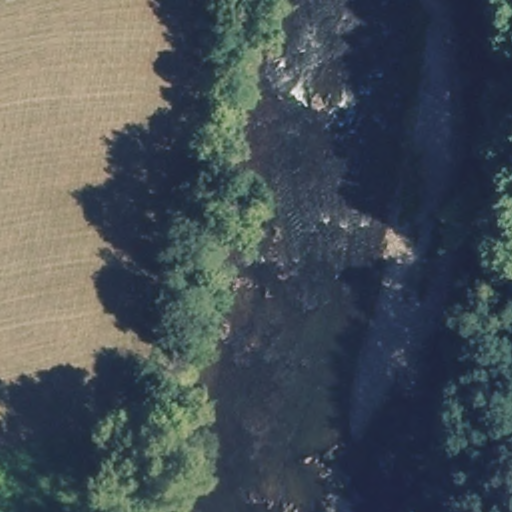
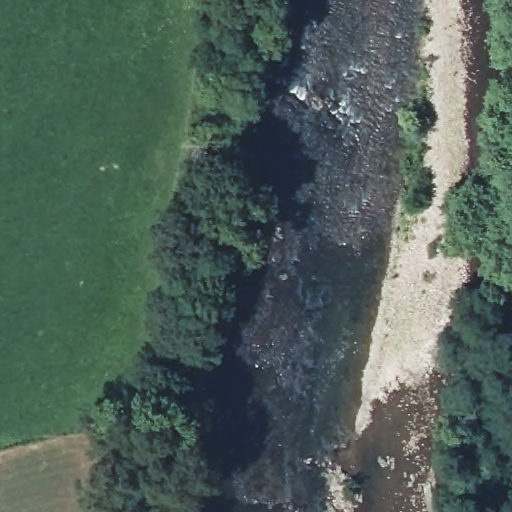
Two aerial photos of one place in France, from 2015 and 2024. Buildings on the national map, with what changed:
[]

